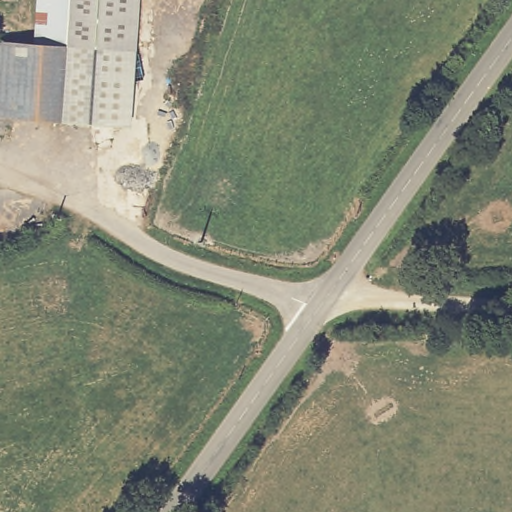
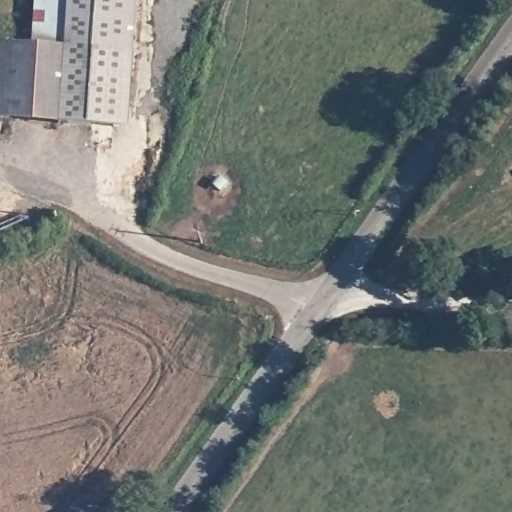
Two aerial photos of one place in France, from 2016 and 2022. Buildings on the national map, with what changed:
unchanged [(0,43),(34,45),(38,0),(124,0),(119,77),(63,72),(59,123),(0,118),(0,43)]
unchanged [(92,126),(59,123),(63,72),(119,77),(125,77),(124,102),(120,103),(118,127),(92,126)]

